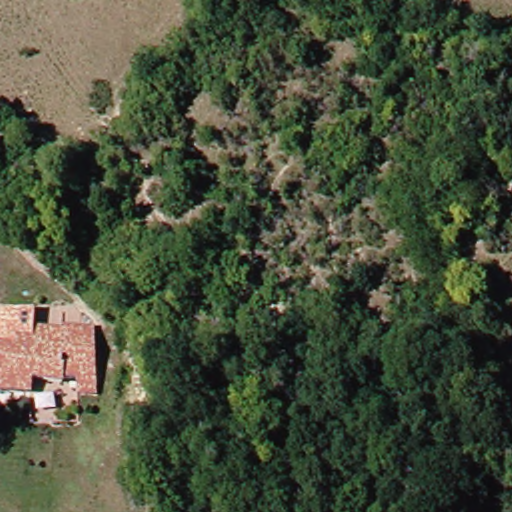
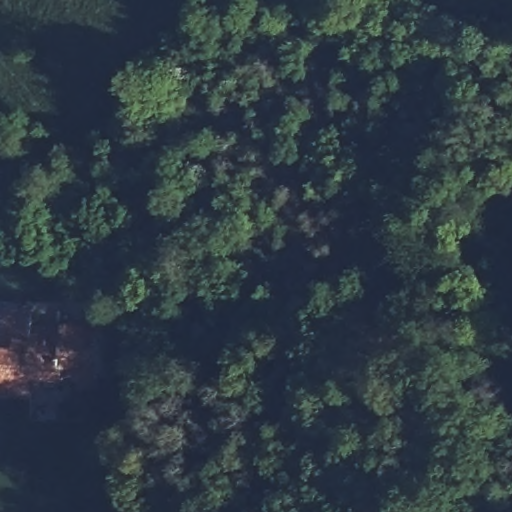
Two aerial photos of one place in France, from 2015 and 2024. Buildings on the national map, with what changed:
unchanged [(68,314),(68,326),(95,327),(94,342),(4,340),(5,312),(68,314)]
unchanged [(15,392),(0,392),(0,340),(4,340),(94,342),(93,370),(73,369),(72,380),(32,379),(33,392),(15,392)]

